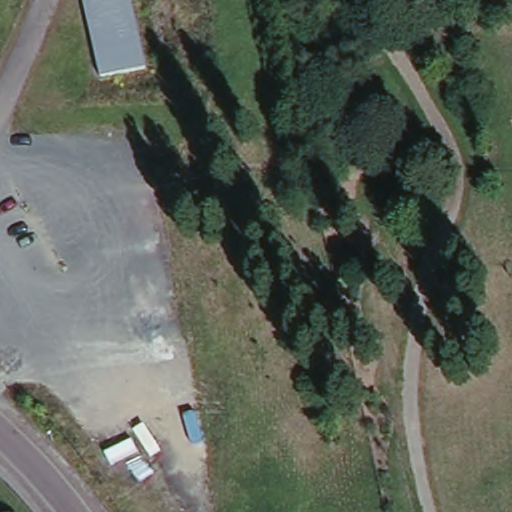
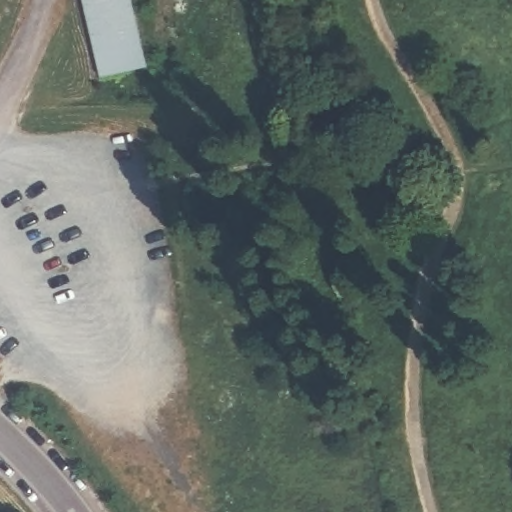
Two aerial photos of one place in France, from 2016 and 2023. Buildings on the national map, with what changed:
unchanged [(84,0),(131,0),(144,64),(99,73),(84,0)]

